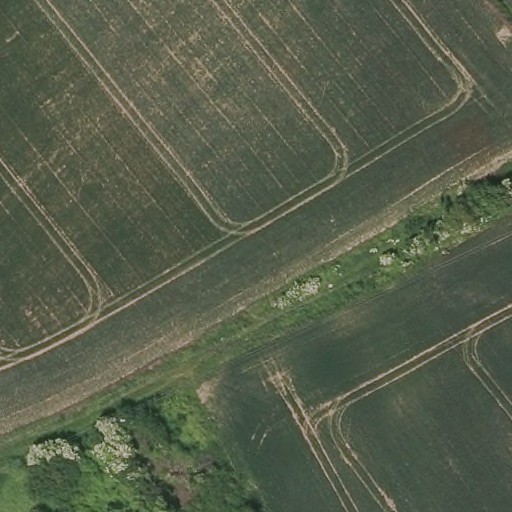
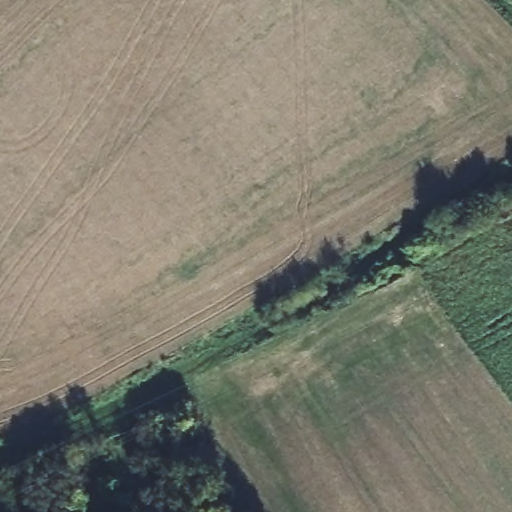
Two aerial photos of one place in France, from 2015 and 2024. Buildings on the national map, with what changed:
[]

